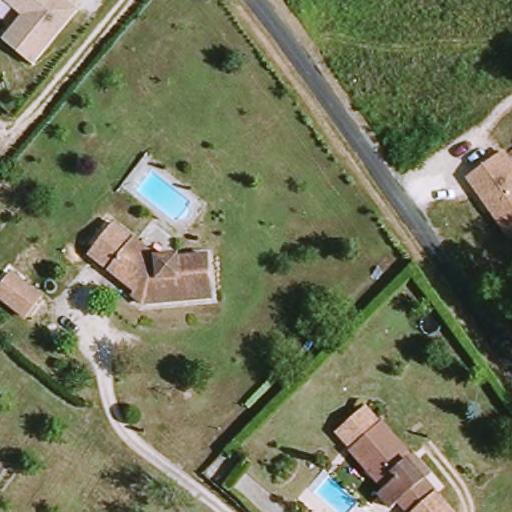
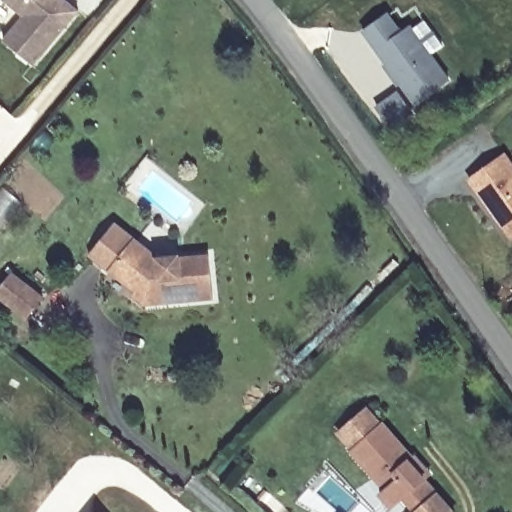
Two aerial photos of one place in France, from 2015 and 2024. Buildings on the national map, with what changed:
unchanged [(81,10),(36,68),(1,41),(22,14),(5,0),(69,0),(81,10)]
new [(414,105),(400,85),(397,87),(382,67),(385,64),(362,32),(389,12),(403,30),(411,24),(450,79),(414,105)]
unchanged [(512,157),(512,242),(511,243),(468,180),(508,151),(512,157)]
unchanged [(91,260),(115,229),(158,264),(179,262),(180,265),(210,262),(214,303),(145,310),(134,301),(137,297),(91,260)]
unchanged [(44,299),(29,319),(0,297),(0,291),(13,274),(44,299)]
unchanged [(405,512),(402,507),(396,512),(392,512),(381,499),(371,488),(364,493),(353,480),(364,470),(352,455),(354,454),(340,438),(368,414),(381,430),(383,429),(412,463),(415,461),(432,481),(426,486),(438,500),(449,512),(405,512)]
new [(284,512),(265,512),(256,503),(270,487),(290,505),(284,512)]
new [(98,512),(96,512),(97,511),(98,512)]

